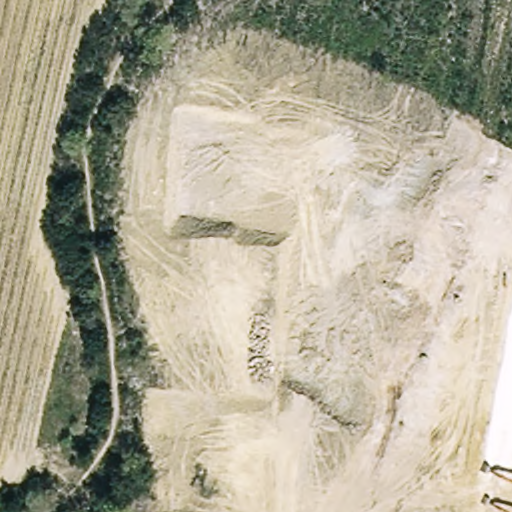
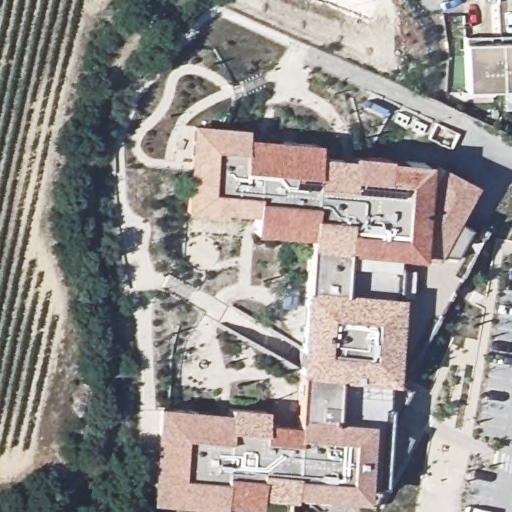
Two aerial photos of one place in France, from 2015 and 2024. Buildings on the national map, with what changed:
new [(464,45),(512,42),(512,90),(466,92),(464,45)]
new [(193,125),(248,129),(248,138),(318,142),(317,156),(351,158),(352,155),(388,157),(388,159),(427,162),(424,194),(439,166),(473,184),(454,221),(467,227),(479,235),(398,385),(408,390),(389,427),(408,437),(371,506),(363,501),(294,495),(293,500),(259,497),(258,508),(223,506),(223,509),(152,505),(158,408),(228,413),(229,407),(266,410),(264,422),(297,425),(301,376),(297,376),(304,290),(307,290),(310,239),(253,235),(253,216),(222,214),(221,217),(187,216),(193,125)]

